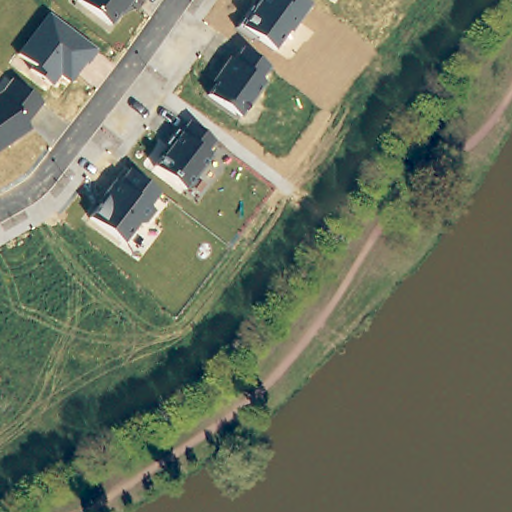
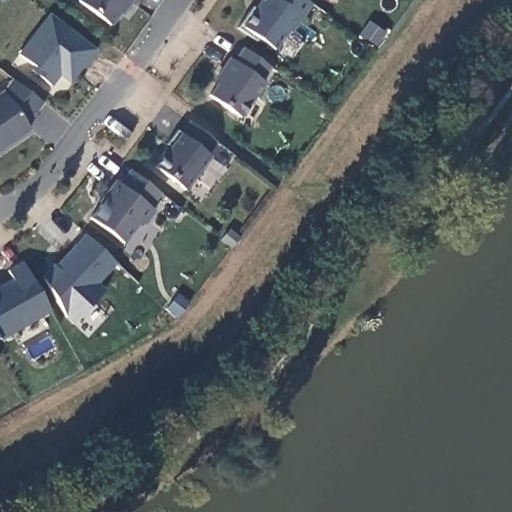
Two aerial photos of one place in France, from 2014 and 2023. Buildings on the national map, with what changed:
unchanged [(79,0),(133,0),(122,16),(119,14),(110,25),(79,0)]
unchanged [(250,11),(254,14),(262,0),(306,0),(312,4),(292,32),(289,30),(276,50),(260,37),(256,41),(238,29),(250,11)]
unchanged [(49,15),(99,50),(87,65),(84,64),(70,84),(59,77),(52,87),(32,71),(37,67),(17,52),(49,15)]
unchanged [(218,84),(212,82),(230,58),(237,61),(247,49),(272,68),(262,81),(267,84),(241,118),(210,96),(218,84)]
unchanged [(12,80),(42,103),(27,125),(30,130),(0,151),(0,93),(4,91),(12,80)]
unchanged [(164,156),(162,155),(181,132),(184,134),(191,122),(216,140),(207,153),(211,157),(185,191),(155,167),(164,156)]
unchanged [(90,218),(101,204),(99,202),(116,181),(121,183),(131,172),(159,193),(149,207),(155,211),(145,224),(139,224),(124,243),(90,218)]
new [(72,325),(44,278),(57,264),(60,265),(84,234),(117,263),(99,284),(106,290),(72,325)]
new [(6,268),(23,259),(51,312),(2,339),(0,336),(0,286),(12,280),(6,268)]

